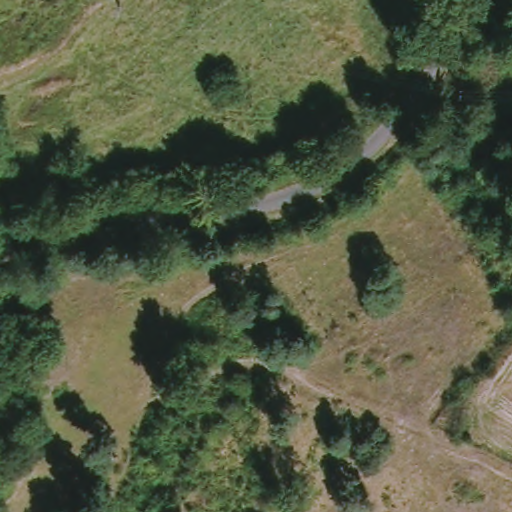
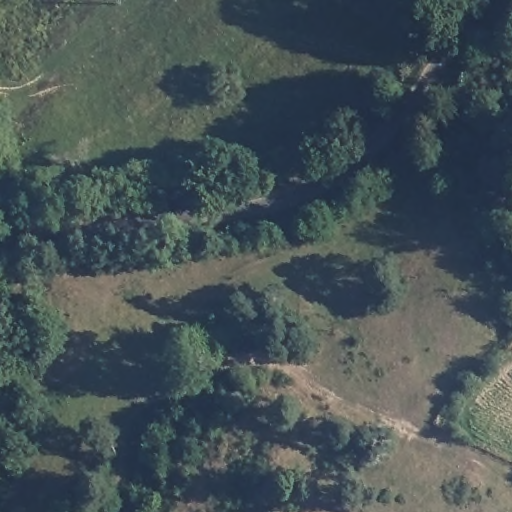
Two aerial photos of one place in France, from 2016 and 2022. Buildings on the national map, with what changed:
[]

